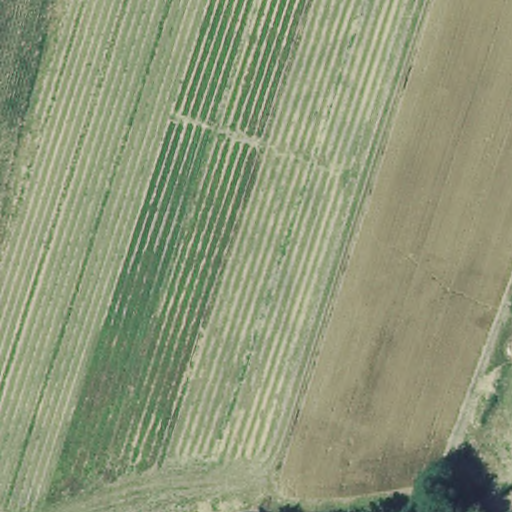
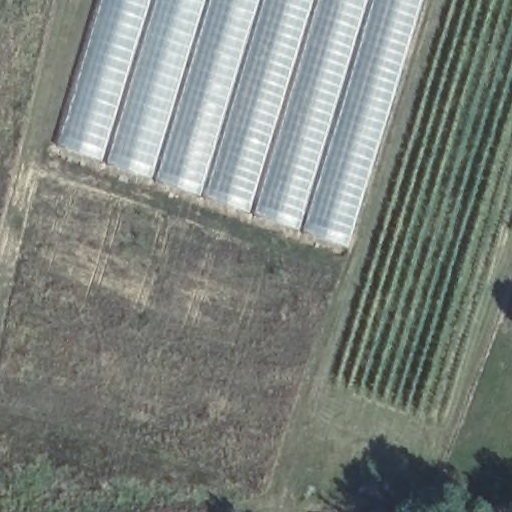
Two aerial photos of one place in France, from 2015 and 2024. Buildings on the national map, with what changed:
new [(351,248),(53,147),(98,0),(424,0),(351,248)]

